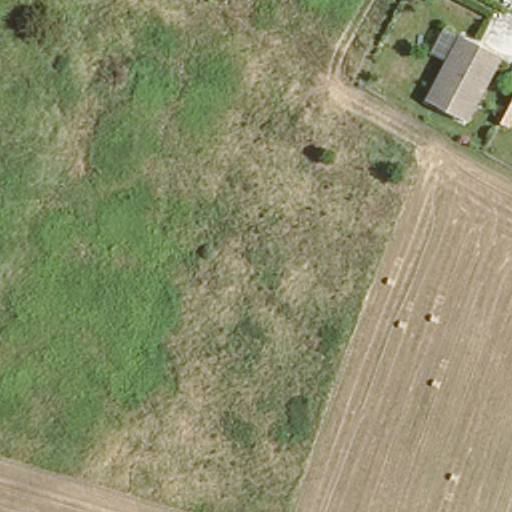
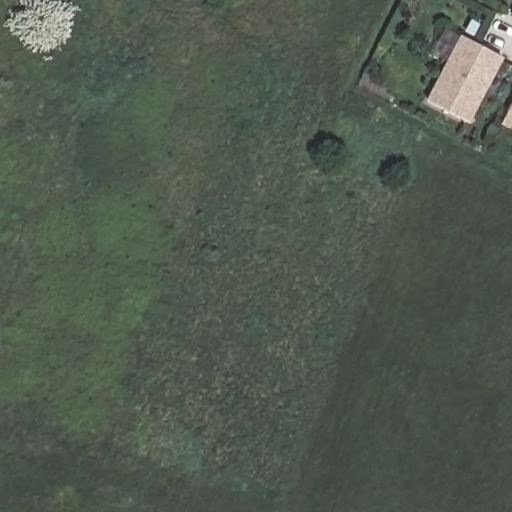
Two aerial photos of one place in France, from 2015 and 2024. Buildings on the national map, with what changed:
unchanged [(468,127),(429,106),(463,40),(503,60),(468,127)]

